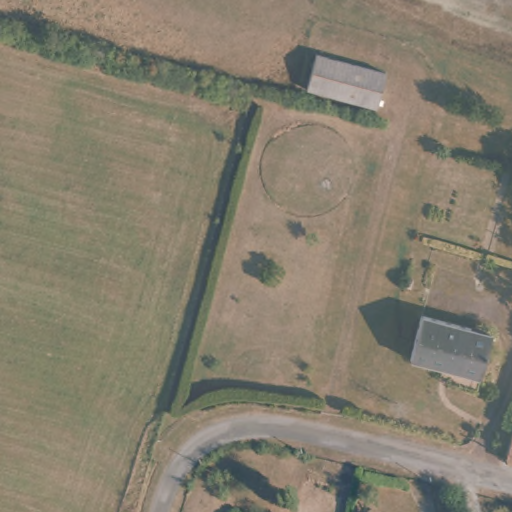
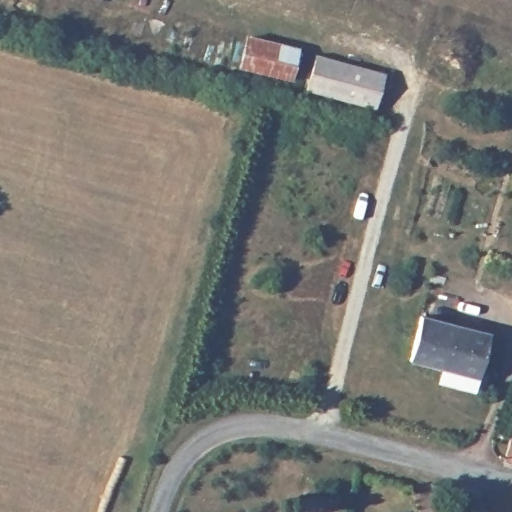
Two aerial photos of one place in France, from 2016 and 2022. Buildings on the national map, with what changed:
new [(293,79),(239,68),(248,34),(299,46),(293,79)]
unchanged [(378,69),(369,101),(302,83),(310,50),(378,69)]
unchanged [(488,330),(478,374),(408,359),(419,315),(488,330)]
unchanged [(502,459),(511,428),(512,428),(512,461),(502,459)]

